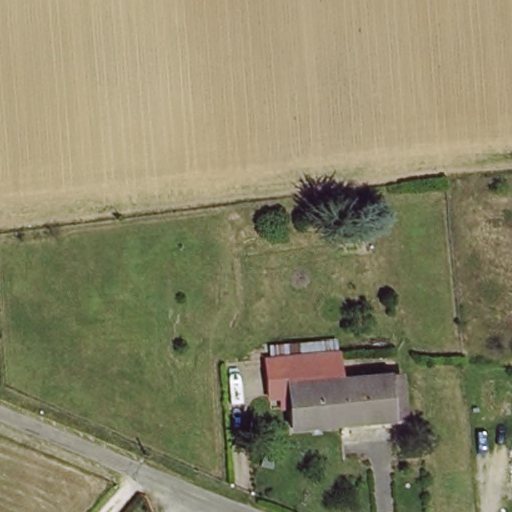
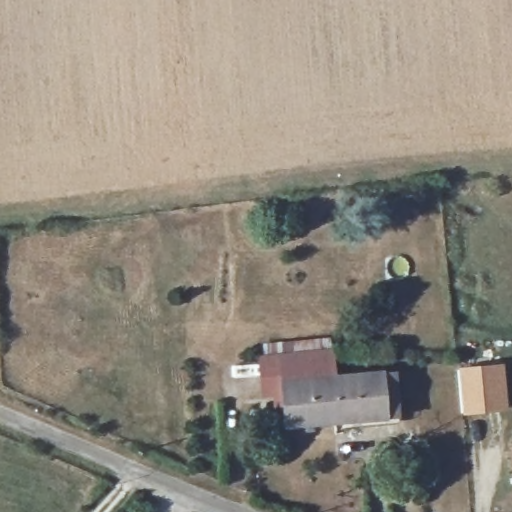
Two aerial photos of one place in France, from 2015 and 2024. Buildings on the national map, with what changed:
unchanged [(282,428),(280,400),(259,400),(257,360),(275,360),(330,357),(333,377),(336,424),(282,428)]
new [(504,363),(508,410),(460,415),(456,367),(504,363)]
unchanged [(336,424),(333,377),(398,376),(400,422),(336,424)]
unchanged [(512,443),(512,473),(510,446),(512,443)]

